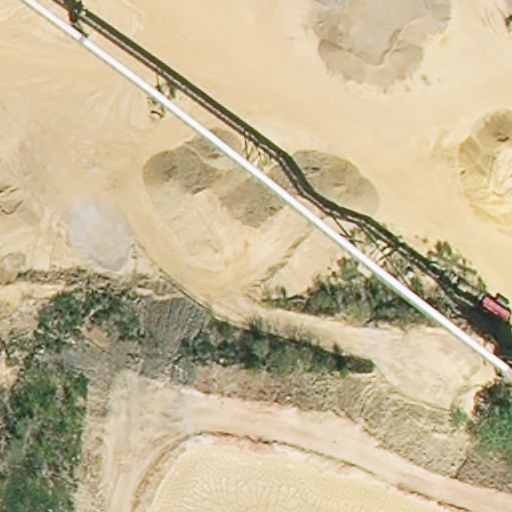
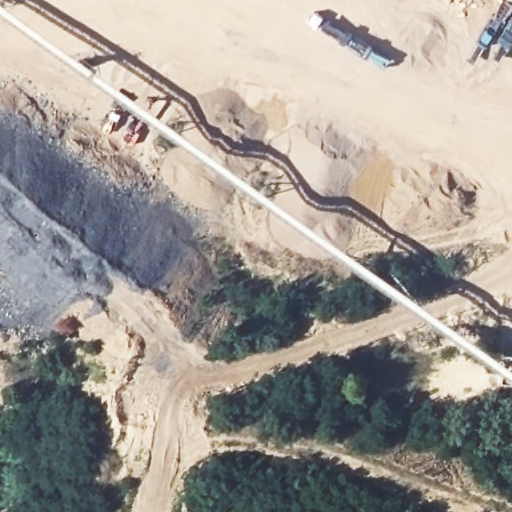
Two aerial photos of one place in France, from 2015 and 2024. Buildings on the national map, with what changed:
unchanged [(512,355),(512,380),(500,379),(500,354),(512,355)]

